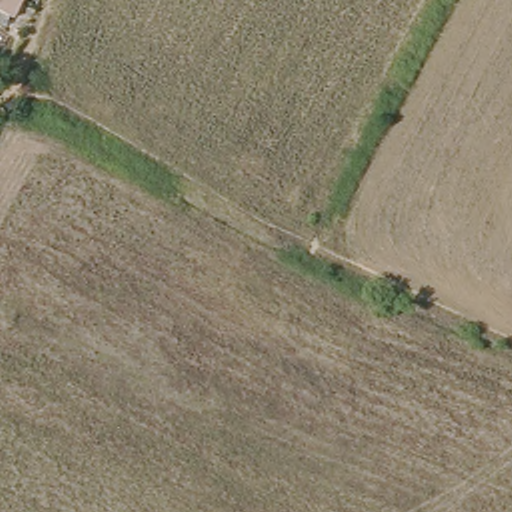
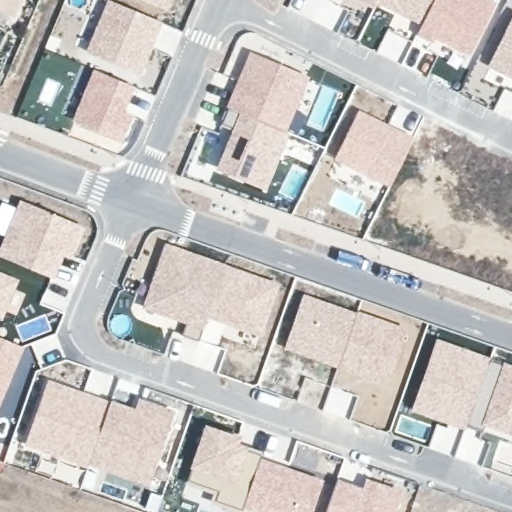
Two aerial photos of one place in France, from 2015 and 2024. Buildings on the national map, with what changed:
unchanged [(15,14),(0,6),(0,0),(22,0),(15,14)]
new [(106,0),(115,0),(155,18),(164,23),(153,47),(141,74),(85,51),(106,0)]
new [(166,13),(158,10),(155,18),(115,0),(172,0),(166,13)]
new [(418,27),(375,6),(373,9),(362,5),(360,10),(342,3),(341,6),(329,0),(432,0),(418,27)]
new [(496,4),(470,56),(433,37),(431,42),(415,33),(418,27),(432,0),(488,0),(496,4)]
new [(512,81),(486,67),(512,14),(512,81)]
new [(248,49),(310,75),(286,133),(237,113),(226,108),(225,108),(248,49)]
new [(93,69),(136,87),(127,110),(136,115),(122,145),(72,124),(70,123),(93,69)]
new [(230,130),(220,125),(226,108),(237,113),(286,133),(289,134),(266,192),(213,170),(230,130)]
new [(358,109),(415,136),(390,188),(332,159),(358,109)]
new [(20,199),(84,227),(71,257),(65,254),(53,279),(0,256),(0,244),(3,236),(15,207),(20,199)]
new [(165,241),(281,284),(261,338),(225,325),(208,320),(200,340),(183,334),(186,324),(141,306),(165,241)]
new [(6,312),(2,321),(0,320),(0,270),(20,279),(15,290),(25,294),(16,315),(6,312)]
new [(405,330),(388,384),(338,369),(285,350),(303,294),(357,312),(405,330)]
new [(25,348),(0,406),(0,337),(25,348)]
new [(436,337),(490,357),(466,429),(460,428),(436,421),(410,411),(436,337)]
new [(512,364),(512,436),(481,424),(503,361),(512,364)]
new [(135,409),(138,398),(175,411),(148,486),(88,465),(87,468),(24,446),(48,380),(111,401),(135,409)]
new [(205,424),(241,437),(240,443),(261,454),(240,510),(215,500),(217,492),(203,487),(188,481),(186,480),(205,424)]
new [(324,480),(312,512),(246,512),(240,510),(261,454),(324,480)]
new [(362,487),(366,477),(401,490),(394,512),(325,512),(337,478),(362,487)]

